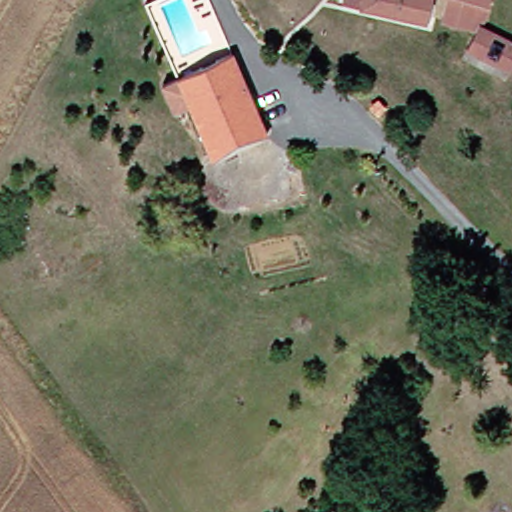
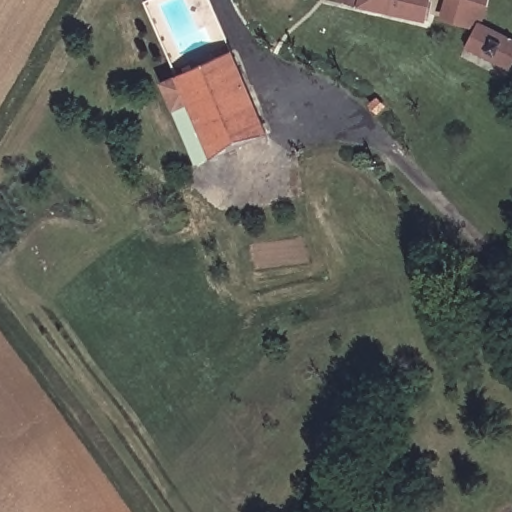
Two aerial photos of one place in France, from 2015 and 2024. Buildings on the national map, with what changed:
unchanged [(425,22),(361,2),(356,0),(434,0),(425,22)]
unchanged [(481,30),(512,47),(512,64),(469,42),(476,30),(445,19),(451,0),(495,0),(481,30)]
unchanged [(243,55),(278,136),(224,161),(198,105),(183,111),(172,83),(243,55)]

